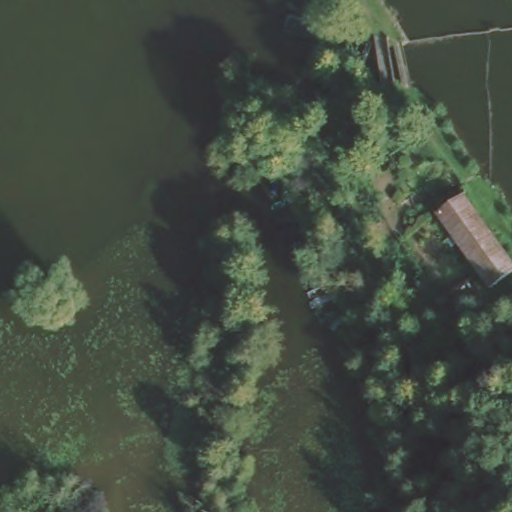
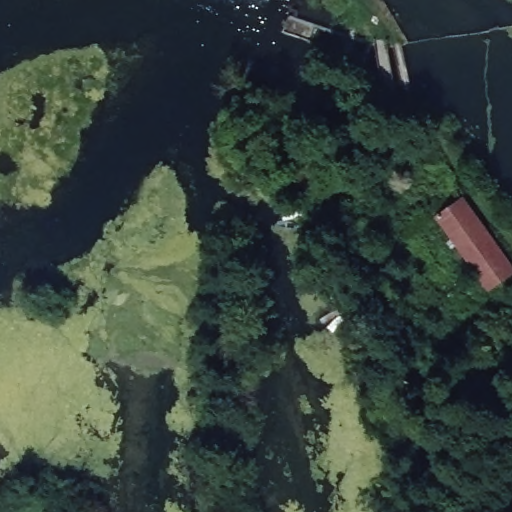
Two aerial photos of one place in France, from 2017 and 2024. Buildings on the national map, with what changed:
unchanged [(427,206),(460,184),(512,258),(512,284),(491,298),(427,206)]

